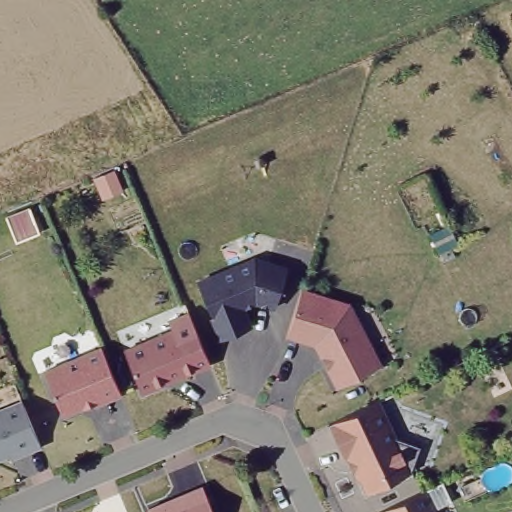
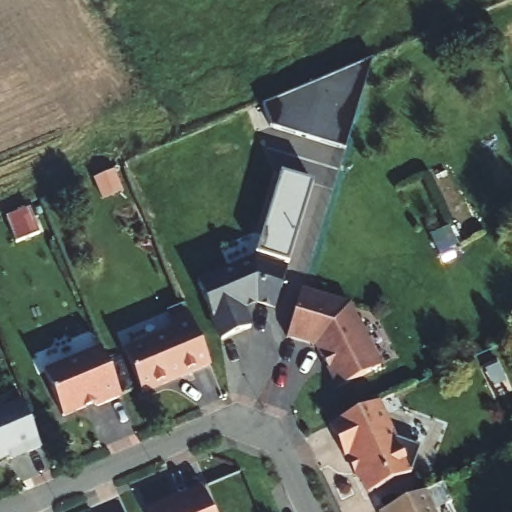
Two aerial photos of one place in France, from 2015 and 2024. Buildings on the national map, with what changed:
new [(373,61),(345,150),(270,126),(280,95),(292,98),(296,83),(309,87),(373,61)]
new [(287,267),(262,261),(258,260),(254,262),(280,175),(312,185),(287,267)]
unchanged [(202,282),(258,260),(262,261),(291,269),(280,307),(259,303),(245,308),(254,329),(225,341),(203,286),(202,282)]
unchanged [(354,303),(385,365),(344,386),(321,342),(293,335),(307,288),(354,303)]
unchanged [(147,397),(130,352),(178,332),(175,323),(193,316),(215,368),(147,397)]
unchanged [(100,405),(98,401),(65,415),(48,370),(105,346),(125,395),(100,405)]
unchanged [(15,457),(13,453),(0,458),(0,410),(25,400),(45,445),(15,457)]
unchanged [(417,472),(372,492),(355,453),(347,456),(336,425),(387,401),(397,427),(395,436),(427,447),(417,472)]
unchanged [(219,512),(154,512),(152,506),(208,485),(219,512)]
unchanged [(438,512),(386,512),(428,492),(438,512)]

